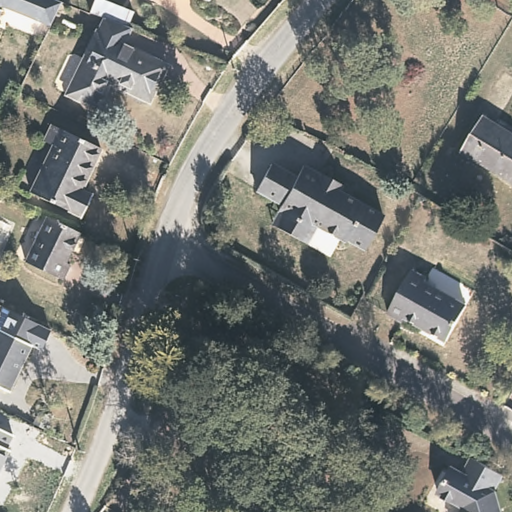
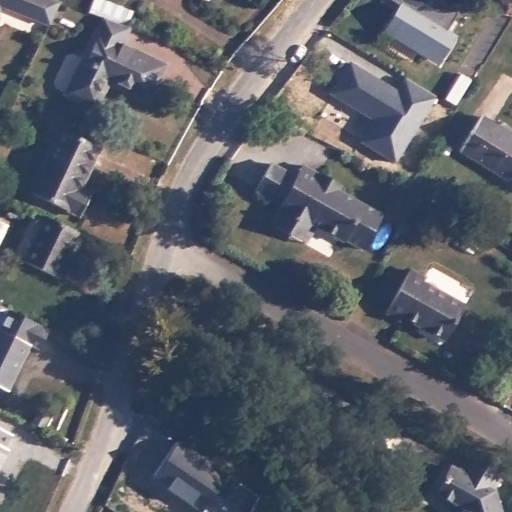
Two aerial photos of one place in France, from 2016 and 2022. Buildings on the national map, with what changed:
unchanged [(52,25),(3,5),(1,9),(0,8),(0,0),(59,0),(63,1),(52,25)]
unchanged [(198,0),(210,0),(208,4),(198,0)]
new [(456,36),(437,65),(383,31),(400,4),(392,0),(436,0),(457,13),(446,30),(456,36)]
unchanged [(0,13),(0,8),(1,9),(0,13)]
unchanged [(129,34),(121,50),(163,71),(148,104),(105,84),(92,111),(67,100),(104,23),(129,34)]
new [(393,160),(361,141),(374,120),(331,92),(350,62),(397,92),(407,77),(434,95),(393,160)]
unchanged [(497,126),(495,130),(512,141),(512,182),(460,150),(481,115),(497,126)]
unchanged [(103,154),(83,194),(94,199),(83,221),(33,195),(55,150),(48,145),(55,129),(103,154)]
unchanged [(273,230),(280,217),(277,215),(281,208),(258,195),(273,169),(298,183),(305,171),(321,181),(322,179),(342,190),(339,196),(383,220),(365,254),(347,244),(346,246),(317,230),(307,249),(273,230)]
unchanged [(78,232),(63,262),(68,265),(60,281),(22,261),(44,216),(78,232)]
unchanged [(401,318),(400,321),(384,313),(390,303),(408,270),(422,279),(421,282),(462,305),(444,340),(442,341),(401,318)]
new [(0,335),(0,304),(10,309),(50,329),(38,351),(33,348),(1,333),(0,335)]
unchanged [(10,395),(0,390),(0,335),(1,333),(33,348),(10,395)]
unchanged [(6,451),(9,452),(0,471),(0,431),(13,438),(6,451)]
new [(189,503),(167,488),(153,478),(176,440),(228,475),(239,482),(225,502),(241,512),(200,512),(189,503)]
unchanged [(502,474),(492,492),(501,512),(463,512),(461,506),(436,492),(451,466),(462,472),(471,457),(502,474)]

